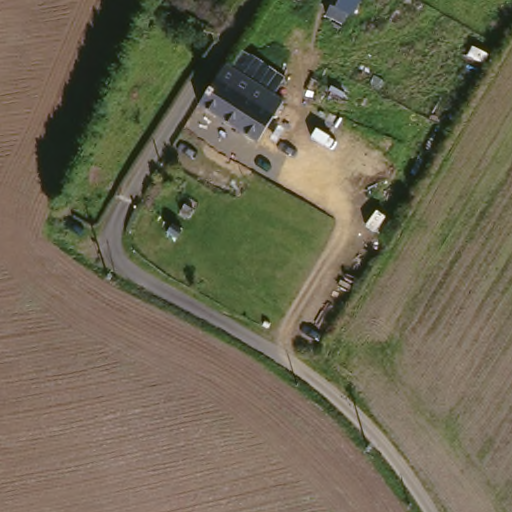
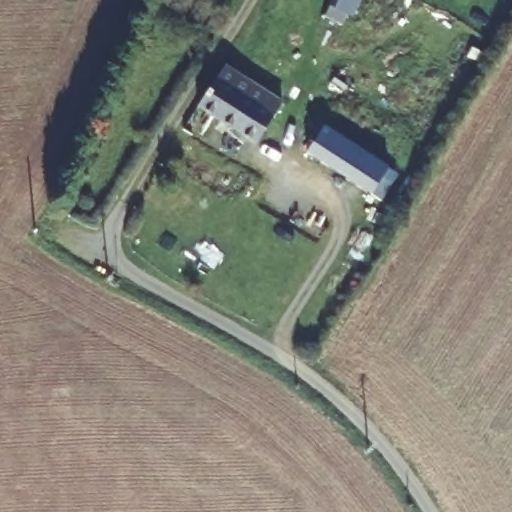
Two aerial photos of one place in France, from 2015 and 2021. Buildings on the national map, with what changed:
unchanged [(247,140),(197,109),(214,84),(223,68),(272,98),(281,104),(256,145),(247,140)]
new [(388,169),(372,197),(306,155),(325,127),(388,169)]

